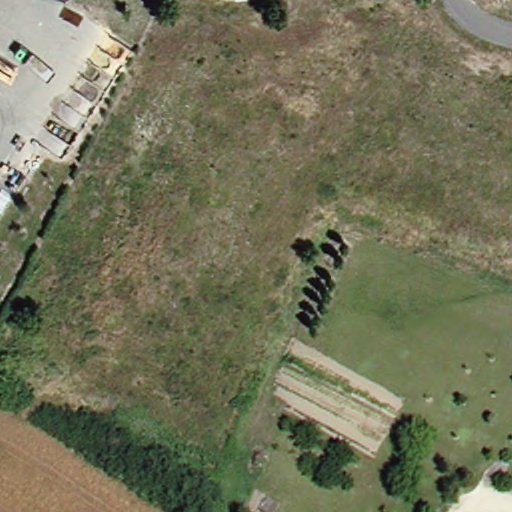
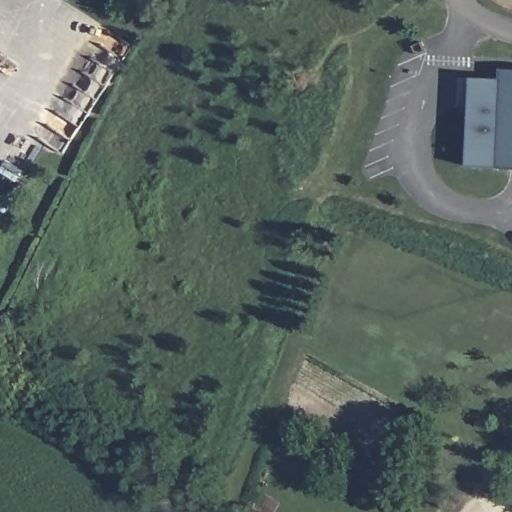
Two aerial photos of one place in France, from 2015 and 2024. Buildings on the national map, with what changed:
new [(502,73),(506,73),(512,73),(512,173),(470,171),(473,81),(502,83),(502,73)]

